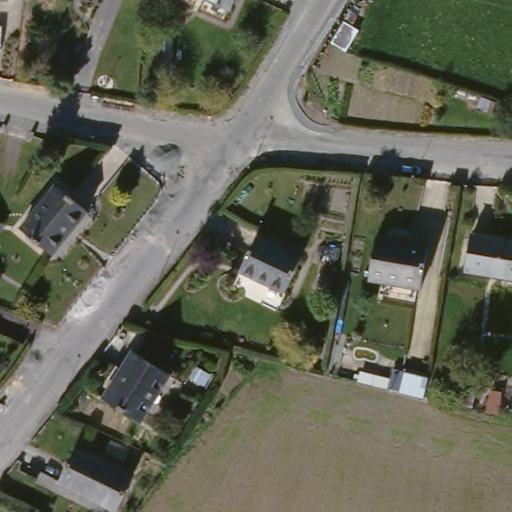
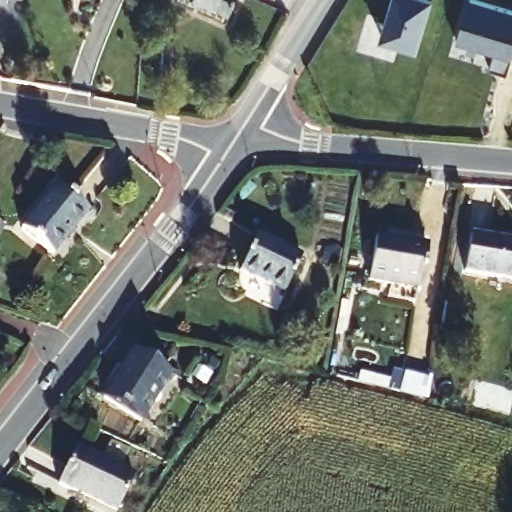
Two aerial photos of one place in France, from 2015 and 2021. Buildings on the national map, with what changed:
unchanged [(227,9),(205,0),(231,0),(227,9)]
new [(419,50),(381,38),(387,17),(382,15),(386,0),(433,0),(419,50)]
new [(512,6),(512,65),(510,73),(491,68),(495,53),(457,42),(469,0),(490,0),(512,6)]
unchanged [(159,41),(155,71),(139,68),(140,53),(142,40),(159,41)]
unchanged [(87,211),(51,252),(22,227),(57,184),(87,211)]
unchanged [(512,243),(512,279),(467,271),(474,235),(512,243)]
unchanged [(426,244),(418,288),(368,281),(373,237),(426,244)]
unchanged [(302,262),(282,297),(239,273),(258,239),(302,262)]
unchanged [(174,375),(141,420),(102,387),(137,346),(174,375)]
unchanged [(475,382),(467,408),(453,405),(462,378),(475,382)]
unchanged [(407,382),(403,398),(394,396),(392,395),(396,379),(407,382)]
unchanged [(112,512),(110,512),(56,486),(71,451),(129,477),(112,512)]

